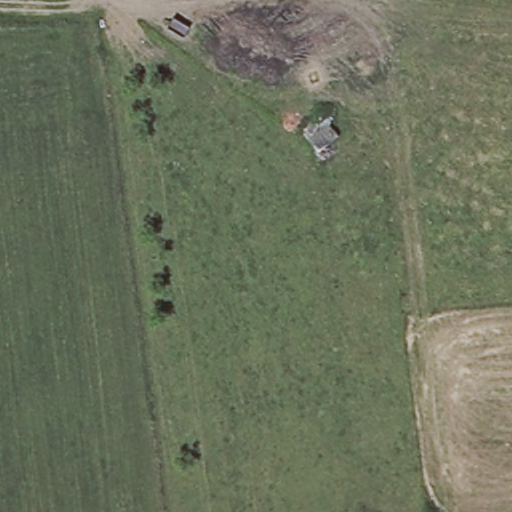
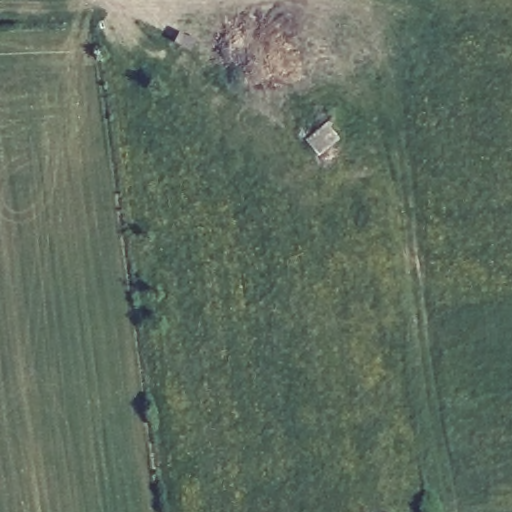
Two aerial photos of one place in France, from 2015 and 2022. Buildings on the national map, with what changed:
unchanged [(303,132),(330,105),(339,115),(345,140),(316,158),(303,132)]

